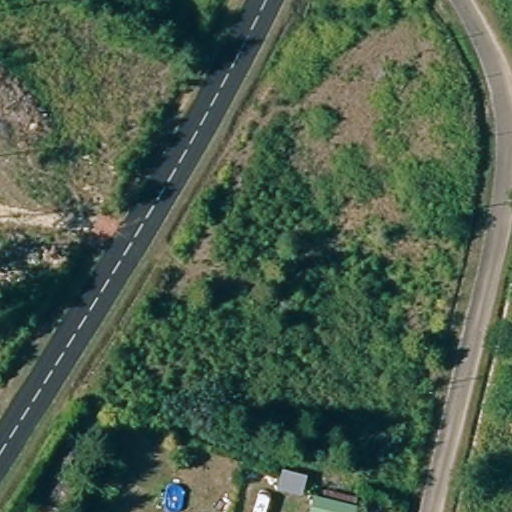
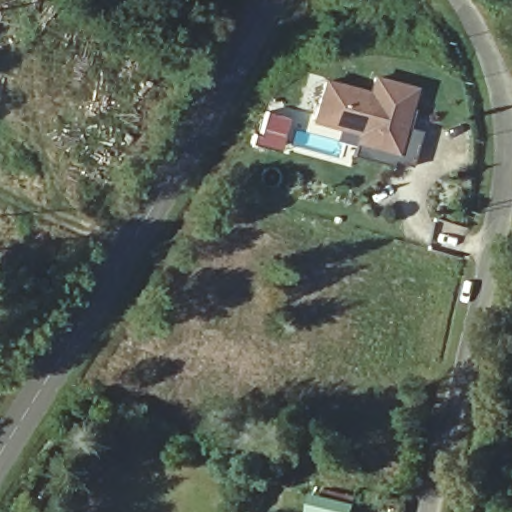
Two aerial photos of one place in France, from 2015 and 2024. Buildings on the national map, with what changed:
new [(355,141),(357,132),(311,120),(323,75),(368,87),(372,72),(416,85),(411,107),(415,108),(410,126),(421,130),(412,165),(393,160),(391,165),(353,154),(355,141)]
unchanged [(314,499),(349,507),(348,512),(311,512),(314,499)]

